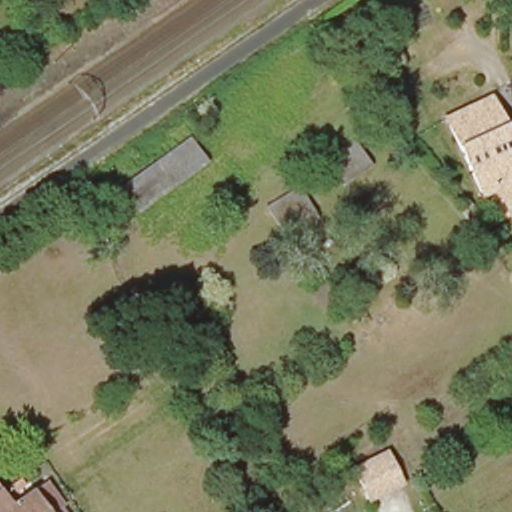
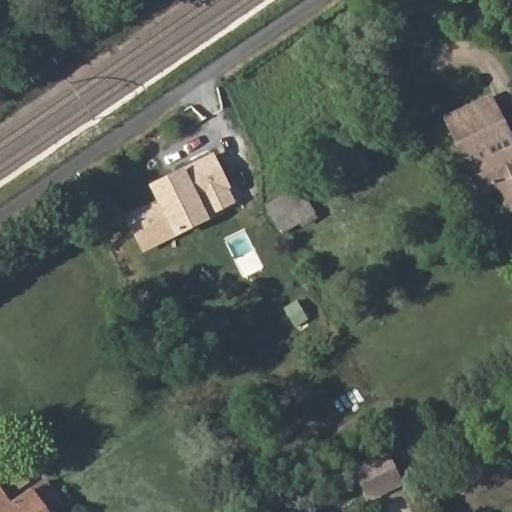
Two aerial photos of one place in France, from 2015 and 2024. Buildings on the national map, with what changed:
unchanged [(494,96),(512,139),(512,223),(497,185),(482,191),(450,114),(494,96)]
demolished [(191,137),(206,157),(140,209),(125,189),(191,137)]
unchanged [(355,148),(367,166),(338,185),(326,167),(355,148)]
new [(155,200),(148,185),(183,168),(212,152),(230,188),(228,189),(235,203),(208,217),(208,219),(173,237),(141,253),(123,216),(155,200)]
unchanged [(299,198),(311,217),(292,230),(283,236),(270,216),(282,209),(299,198)]
unchanged [(474,214),(465,222),(454,209),(464,200),(463,201),(474,214)]
unchanged [(384,449),(399,482),(369,497),(354,464),(384,449)]
unchanged [(8,506),(29,492),(43,512),(0,512),(0,494),(8,506)]
unchanged [(292,512),(291,512),(292,511),(292,512)]

